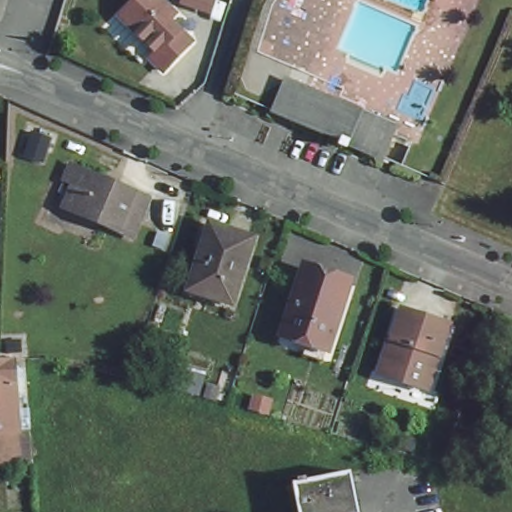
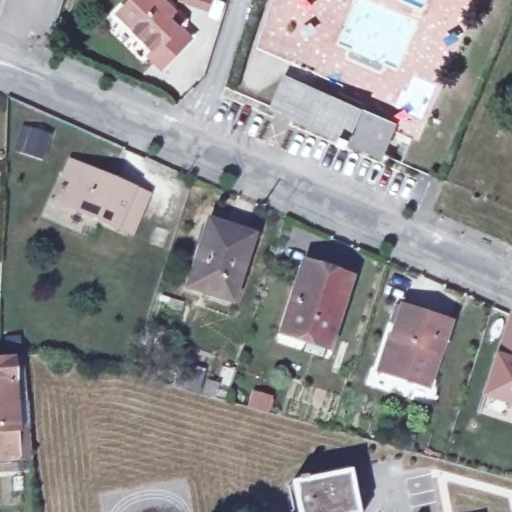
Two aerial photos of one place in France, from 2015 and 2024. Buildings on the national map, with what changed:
unchanged [(172,7),(167,12),(187,32),(160,58),(149,47),(154,42),(119,6),(125,0),(165,0),(172,7)]
unchanged [(211,2),(204,0),(211,0),(211,2)]
unchanged [(279,74),(397,127),(383,157),(263,106),(279,74)]
new [(49,134),(67,142),(57,165),(39,158),(49,134)]
unchanged [(125,230),(111,224),(59,200),(76,164),(127,188),(141,194),(125,230)]
unchanged [(226,302),(184,287),(204,223),(247,237),(226,302)]
unchanged [(345,278),(325,341),(284,328),(304,265),(345,278)]
unchanged [(450,318),(429,384),(379,368),(390,332),(392,333),(401,302),(450,318)]
new [(494,353),(507,313),(512,315),(512,408),(480,398),(494,353)]
unchanged [(19,369),(7,370),(10,413),(0,414),(0,362),(18,360),(19,369)]
unchanged [(15,461),(0,462),(0,414),(10,413),(15,461)]
unchanged [(301,474),(303,473),(305,473),(307,475),(349,467),(359,511),(354,512),(301,512),(294,478),(301,477),(301,474)]

